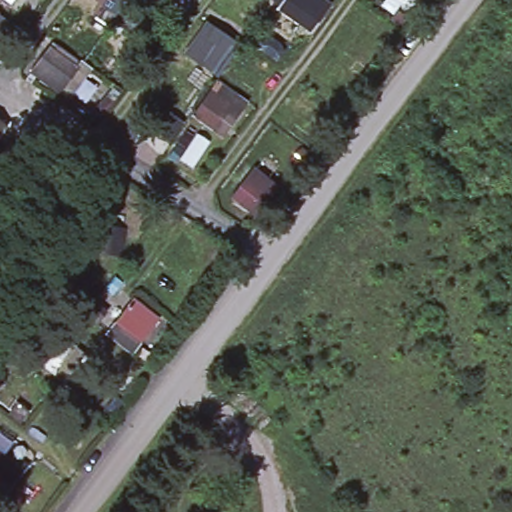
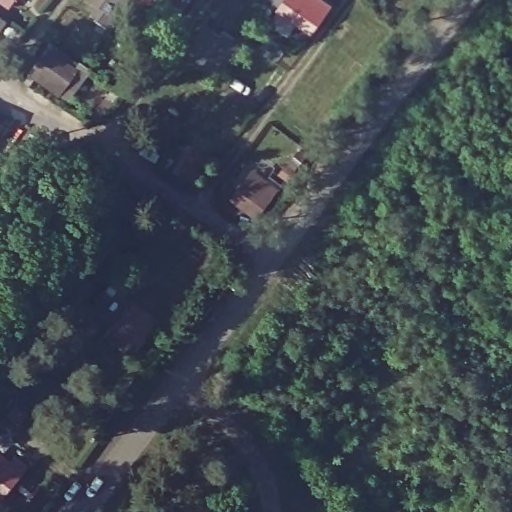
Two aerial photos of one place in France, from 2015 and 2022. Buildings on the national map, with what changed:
unchanged [(122,33),(78,2),(79,0),(148,0),(122,33)]
unchanged [(166,2),(162,0),(168,0),(166,2)]
unchanged [(284,0),(330,0),(335,3),(313,34),(278,9),(284,0)]
unchanged [(404,25),(378,6),(383,0),(424,0),(404,25)]
unchanged [(9,21),(0,33),(0,16),(9,21)]
unchanged [(215,85),(190,61),(211,23),(242,42),(225,73),(252,96),(229,132),(199,111),(215,85)]
unchanged [(34,68),(57,38),(87,60),(66,92),(34,68)]
unchanged [(6,123),(0,131),(0,119),(6,123)]
unchanged [(220,193),(246,152),(284,177),(257,216),(220,193)]
unchanged [(106,330),(131,292),(162,312),(136,353),(106,330)]
unchanged [(62,337),(94,359),(69,383),(41,362),(62,337)]
unchanged [(9,494),(0,488),(0,444),(31,463),(9,494)]

